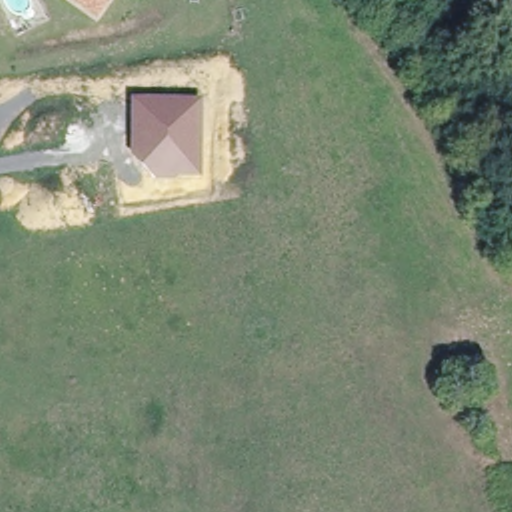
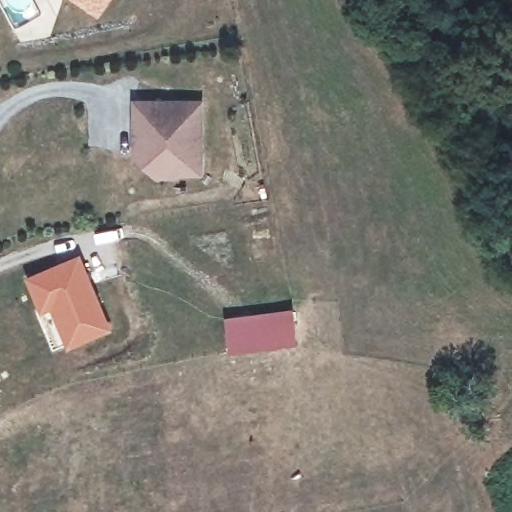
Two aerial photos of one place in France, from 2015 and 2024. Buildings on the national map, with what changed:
unchanged [(99,21),(69,0),(113,0),(99,21)]
unchanged [(202,101),(202,177),(179,179),(178,182),(158,182),(130,157),(131,99),(202,101)]
new [(79,256),(108,328),(70,344),(53,303),(41,308),(29,277),(79,256)]
new [(292,309),(297,347),(229,356),(224,317),(292,309)]

